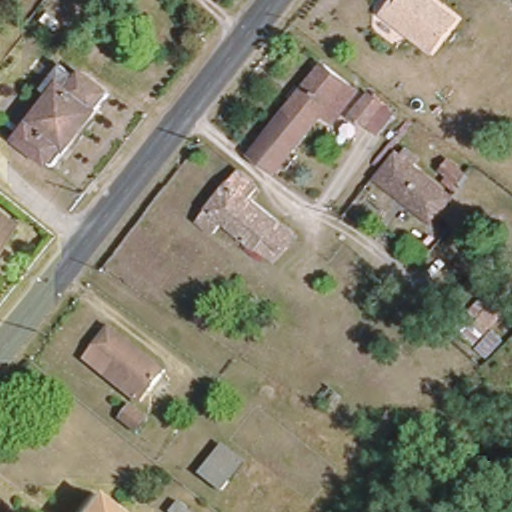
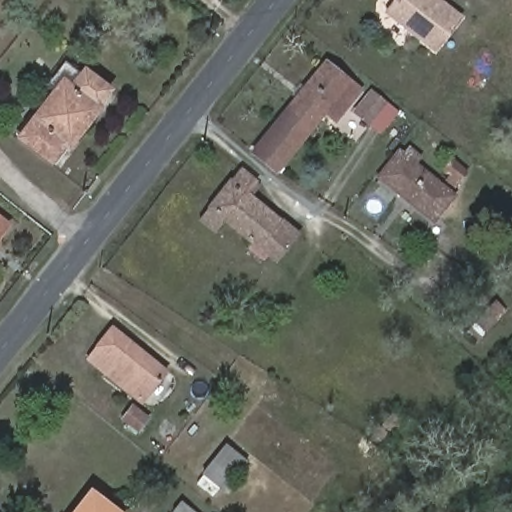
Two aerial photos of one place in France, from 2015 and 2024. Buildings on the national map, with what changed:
unchanged [(451,16),(427,47),(376,7),(381,0),(430,0),(451,16)]
unchanged [(343,104),(335,115),(323,106),(276,167),(252,149),(323,59),(358,85),(343,104)]
unchanged [(52,165),(14,135),(60,75),(69,82),(80,70),(92,79),(100,86),(90,99),(97,105),(52,165)]
unchanged [(364,121),(350,110),(366,90),(379,100),(364,121)]
unchanged [(397,151),(400,152),(451,195),(431,220),(378,176),(397,151)]
unchanged [(251,187),(300,229),(288,242),(269,226),(259,239),(249,231),(240,242),(218,224),(227,212),(212,200),(243,162),(260,176),(251,187)]
unchanged [(0,231),(0,215),(7,221),(0,231)]
unchanged [(452,326),(467,310),(460,302),(476,286),(483,293),(494,303),(477,320),(462,336),(452,326)]
unchanged [(127,388),(131,382),(92,351),(108,330),(161,372),(140,399),(127,388)]
unchanged [(377,448),(367,441),(376,431),(403,402),(413,412),(386,440),(377,448)]
unchanged [(126,420),(135,407),(149,418),(140,430),(126,420)]
unchanged [(225,490),(205,473),(228,446),(248,463),(225,490)]
unchanged [(76,512),(92,492),(120,512),(76,512)]
unchanged [(167,512),(176,502),(186,511),(184,512),(167,512)]

